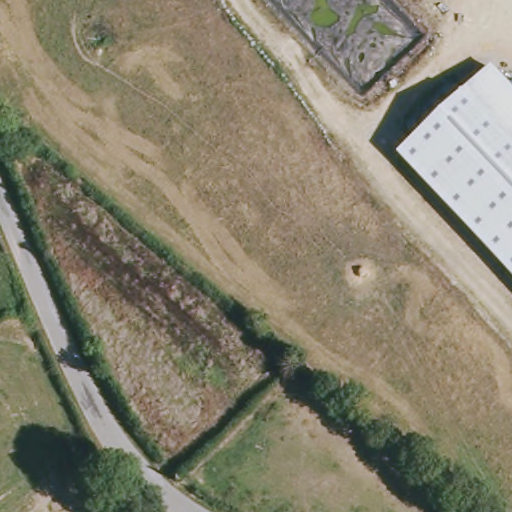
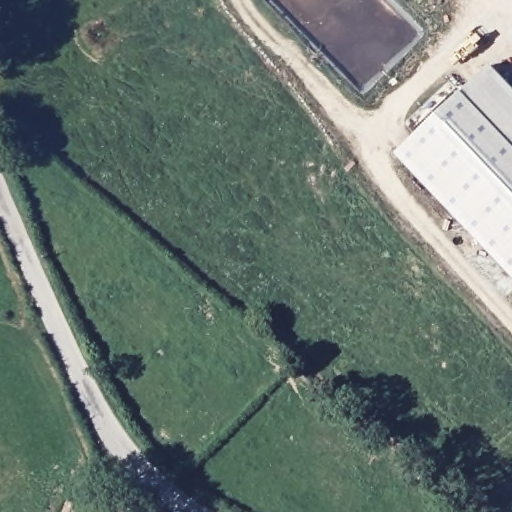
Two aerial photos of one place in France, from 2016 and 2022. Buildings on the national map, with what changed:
unchanged [(512,277),(395,154),(490,66),(512,90),(512,277)]

